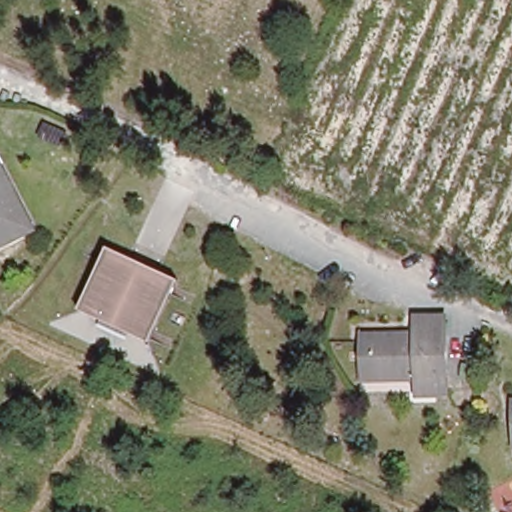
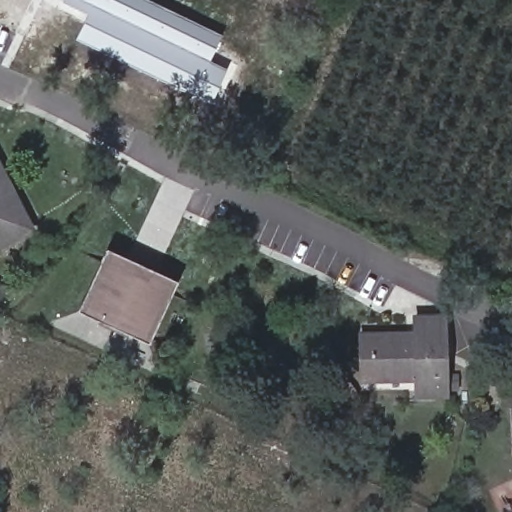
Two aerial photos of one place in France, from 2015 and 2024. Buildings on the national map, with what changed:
new [(77,39),(89,14),(64,1),(64,0),(151,0),(222,34),(210,60),(227,67),(212,102),(77,39)]
unchanged [(27,209),(35,224),(25,229),(0,242),(0,156),(27,209)]
unchanged [(180,280),(150,344),(80,310),(109,248),(180,280)]
unchanged [(365,333),(372,333),(419,332),(419,316),(447,315),(448,393),(420,393),(420,378),(372,378),(365,379),(365,333)]
unchanged [(512,401),(512,420),(511,402),(512,401)]

